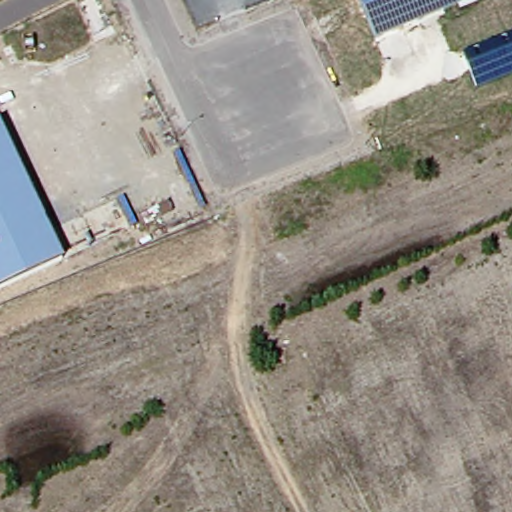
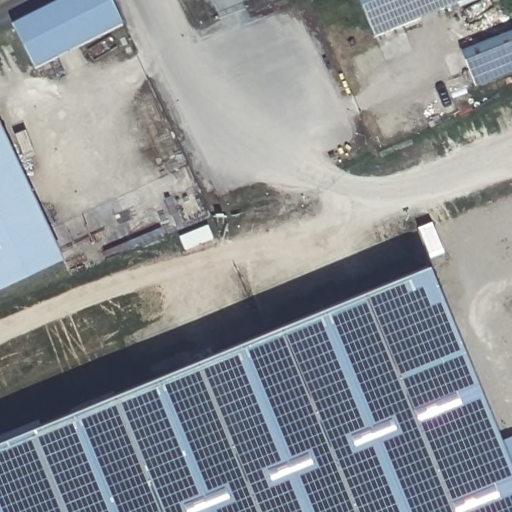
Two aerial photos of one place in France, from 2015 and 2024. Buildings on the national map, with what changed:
new [(34,71),(11,25),(61,0),(109,0),(123,27),(34,71)]
unchanged [(371,39),(355,0),(467,0),(371,39)]
new [(512,73),(478,87),(464,53),(512,33),(512,73)]
unchanged [(60,259),(0,287),(0,131),(60,259)]
new [(425,259),(512,471),(512,512),(0,512),(0,432),(425,259)]
new [(512,436),(512,470),(500,441),(512,436)]

